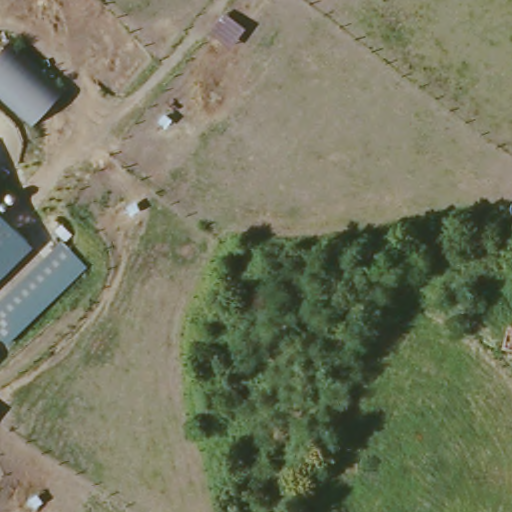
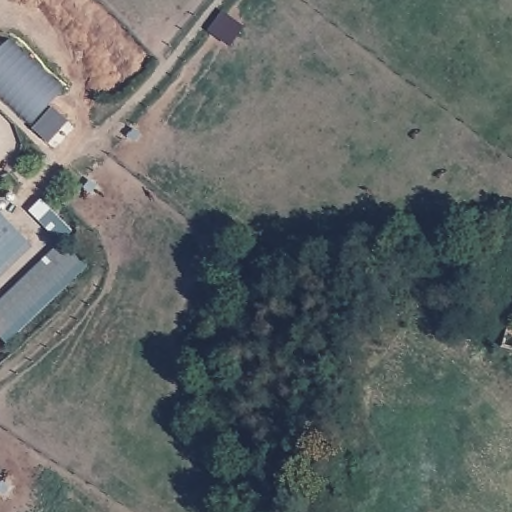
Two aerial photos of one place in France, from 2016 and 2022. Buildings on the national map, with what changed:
unchanged [(38,125),(0,94),(0,52),(8,42),(65,92),(38,125)]
unchanged [(0,279),(0,212),(33,247),(0,279)]
unchanged [(9,343),(0,334),(0,303),(63,243),(89,266),(9,343)]
unchanged [(499,346),(509,314),(512,315),(512,349),(499,346)]

